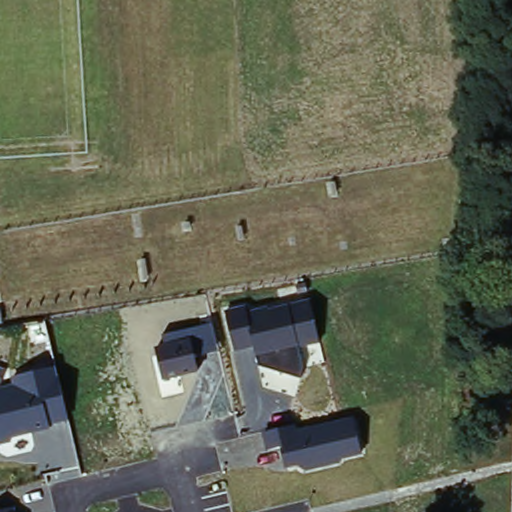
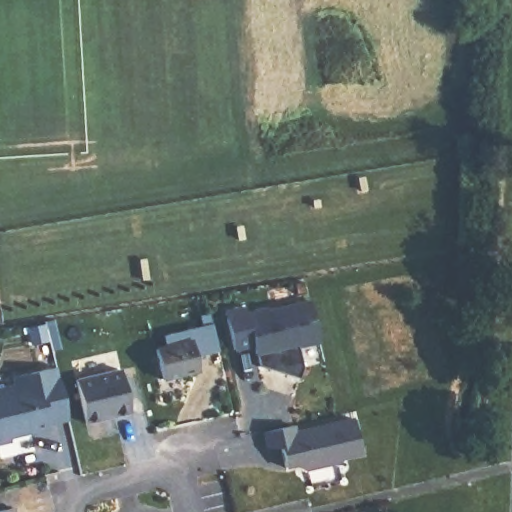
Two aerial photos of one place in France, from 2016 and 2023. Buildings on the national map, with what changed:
unchanged [(224,310),(248,305),(249,311),(310,298),(320,343),(299,348),(303,366),(299,378),(259,367),(255,347),(233,352),(224,310)]
unchanged [(154,348),(164,346),(162,335),(212,324),(219,353),(195,359),(198,372),(162,381),(154,348)]
unchanged [(11,378),(57,368),(68,421),(49,424),(50,429),(10,437),(11,444),(0,446),(0,388),(13,385),(11,378)]
new [(84,421),(74,379),(119,368),(129,411),(113,414),(100,418),(84,421)]
unchanged [(263,433),(298,424),(300,430),(354,416),(363,454),(343,459),(340,464),(306,473),(298,467),(285,469),(281,449),(267,451),(263,433)]
unchanged [(14,512),(0,512),(0,511),(13,509),(14,512)]

